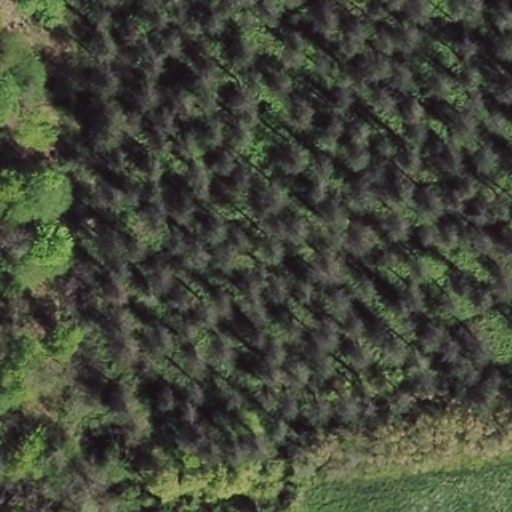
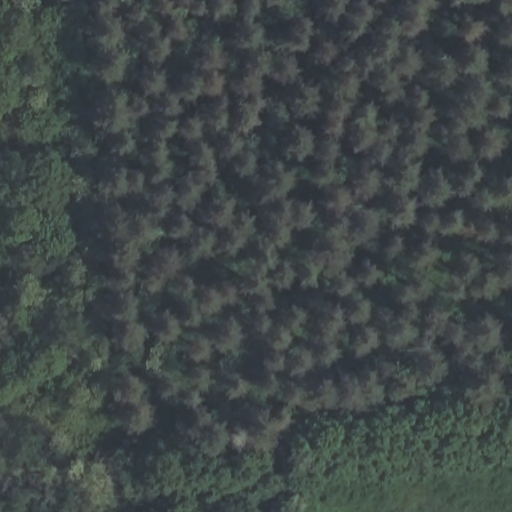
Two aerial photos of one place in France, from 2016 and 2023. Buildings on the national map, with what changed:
[]

